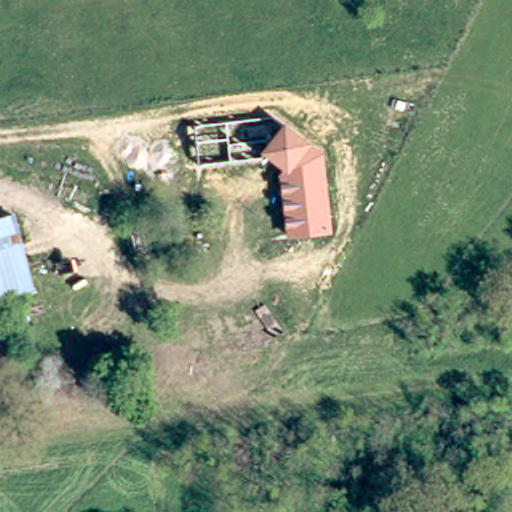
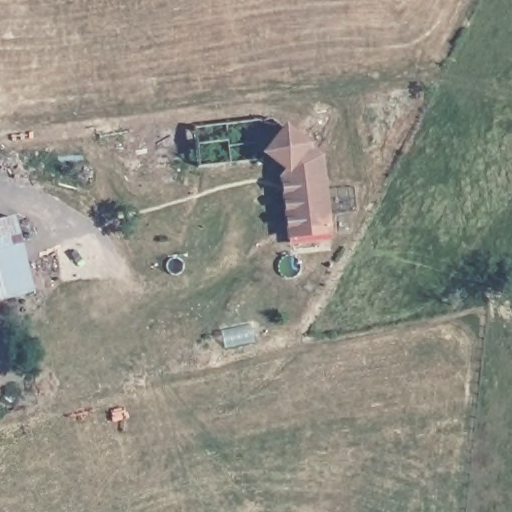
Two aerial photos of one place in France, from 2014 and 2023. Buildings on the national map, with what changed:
unchanged [(325,150),(334,234),(287,237),(280,169),(263,154),(286,125),(325,150)]
unchanged [(25,250),(0,256),(0,220),(17,216),(25,250)]
unchanged [(37,295),(0,305),(0,256),(25,250),(37,295)]
unchanged [(0,341),(0,329),(2,340),(0,341)]

